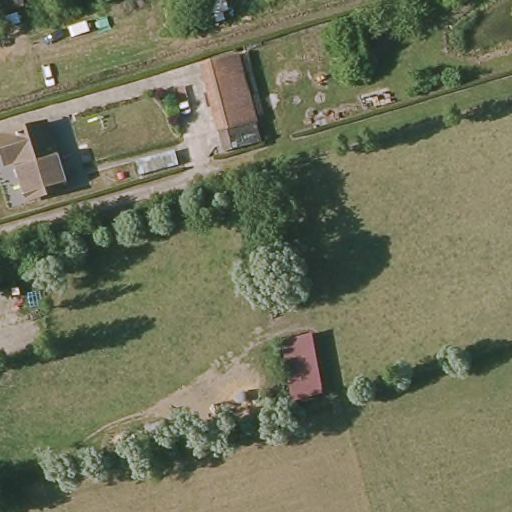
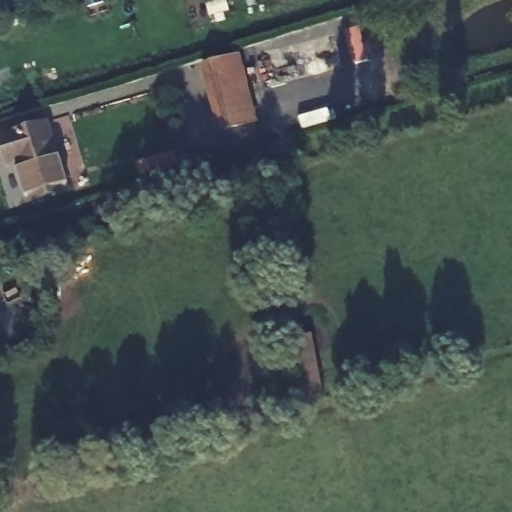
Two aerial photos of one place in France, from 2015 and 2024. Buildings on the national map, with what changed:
unchanged [(202,78),(223,72),(236,69),(251,131),(239,135),(218,140),(202,78)]
unchanged [(48,125),(66,190),(29,200),(19,160),(7,161),(1,138),(48,125)]

